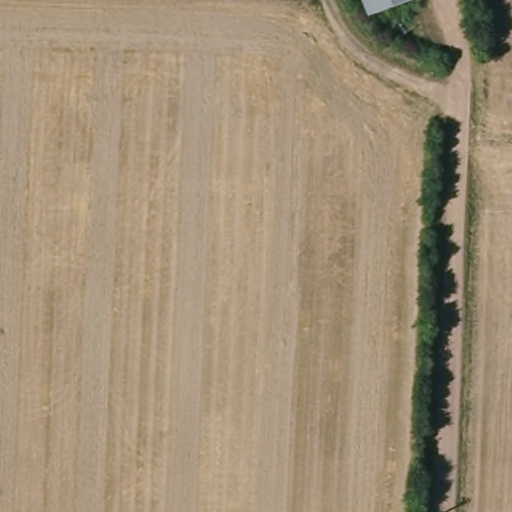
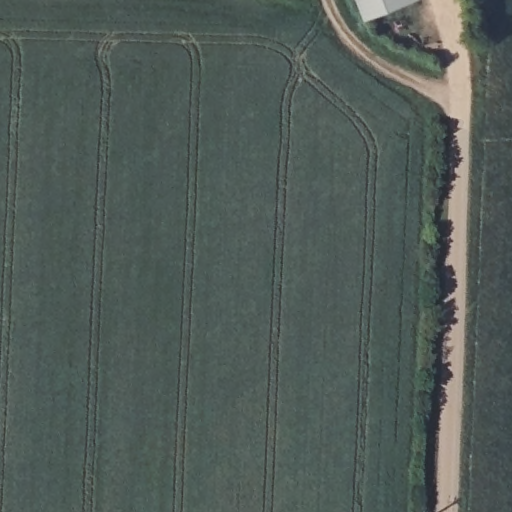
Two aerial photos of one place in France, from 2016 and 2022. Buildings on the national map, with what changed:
unchanged [(370,15),(364,0),(414,0),(370,15)]

